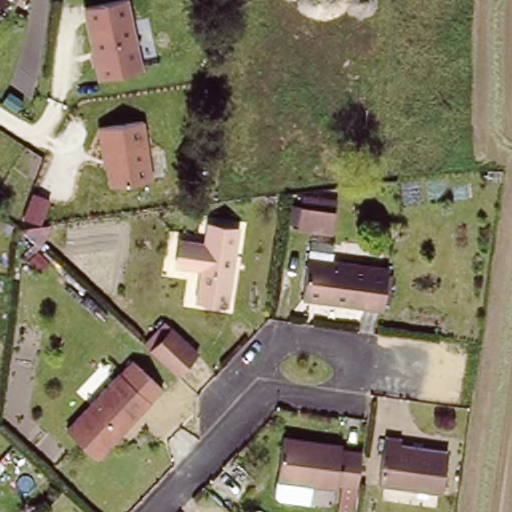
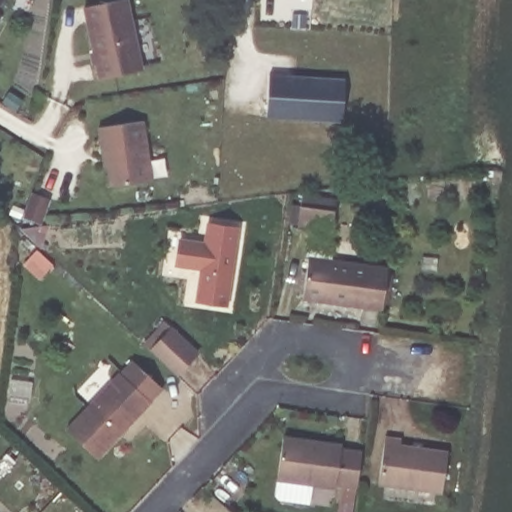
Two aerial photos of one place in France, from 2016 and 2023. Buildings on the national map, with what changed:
unchanged [(0,0),(2,0),(0,4),(0,0)]
unchanged [(128,0),(143,67),(97,77),(82,7),(114,0),(128,0)]
new [(291,76),(298,76),(349,79),(347,122),(270,118),(273,75),(291,76)]
unchanged [(98,125),(145,116),(157,177),(110,187),(98,125)]
unchanged [(337,204),(334,225),(295,221),(297,199),(337,204)]
unchanged [(238,253),(235,252),(231,275),(235,276),(230,305),(202,301),(207,271),(182,267),(186,244),(210,248),(214,224),(242,229),(238,253)]
unchanged [(52,278),(37,265),(48,254),(62,266),(52,278)]
unchanged [(303,297),(308,255),(390,264),(385,306),(303,297)]
unchanged [(177,376),(145,346),(169,320),(201,350),(177,376)]
unchanged [(119,369),(153,401),(135,420),(102,388),(119,369)]
unchanged [(135,420),(101,456),(67,425),(102,388),(135,420)]
unchanged [(404,436),(402,444),(445,450),(439,498),(375,489),(383,433),(404,436)]
unchanged [(338,482),(338,486),(280,478),(286,438),(343,446),(343,449),(363,452),(359,485),(338,482)]

